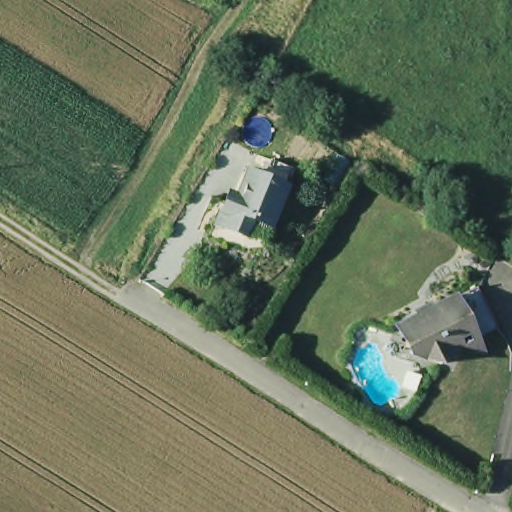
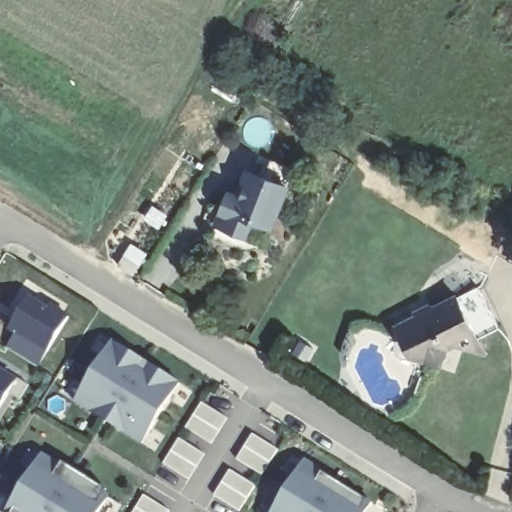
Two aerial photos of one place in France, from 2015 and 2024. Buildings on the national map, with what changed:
unchanged [(274,223),(255,215),(247,232),(220,220),(232,190),(241,193),(251,167),(289,184),(274,223)]
new [(112,260),(118,250),(134,260),(127,270),(112,260)]
unchanged [(474,285),(498,330),(477,340),(453,296),(474,285)]
new [(5,326),(24,295),(44,308),(46,304),(64,315),(42,350),(5,326)]
unchanged [(477,340),(463,348),(449,345),(441,365),(407,355),(412,338),(401,323),(415,317),(415,310),(428,303),(435,305),(453,296),(477,340)]
new [(175,380),(137,441),(70,400),(108,339),(175,380)]
new [(0,371),(12,378),(0,398),(0,371)]
new [(12,378),(9,376),(10,374),(24,382),(15,397),(5,390),(12,378)]
new [(226,419),(211,445),(185,428),(200,402),(226,419)]
new [(277,451),(262,476),(236,460),(252,435),(277,451)]
new [(203,455),(188,480),(162,464),(177,438),(203,455)]
new [(37,452),(105,495),(94,512),(0,512),(37,452)]
new [(368,500),(361,512),(268,512),(300,458),(368,500)]
new [(254,487),(239,512),(238,512),(213,496),(229,470),(254,487)]
new [(167,512),(133,512),(142,496),(167,512)]

